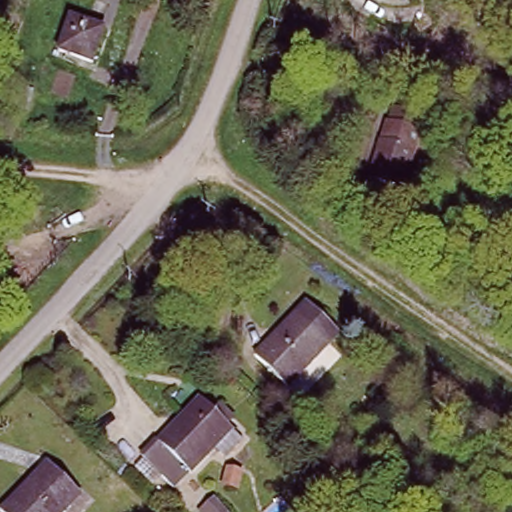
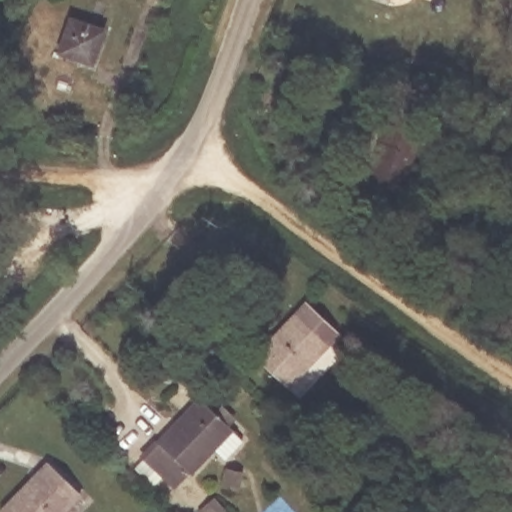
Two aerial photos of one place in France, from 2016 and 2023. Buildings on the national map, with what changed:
unchanged [(68,17),(103,30),(90,64),(55,52),(68,17)]
unchanged [(391,120),(420,129),(418,140),(419,140),(403,202),(371,195),(388,132),(391,120)]
unchanged [(304,305),(338,336),(294,379),(262,347),(304,305)]
unchanged [(169,474),(163,480),(143,461),(199,401),(231,431),(189,475),(181,485),(169,474)]
unchanged [(49,461),(83,492),(65,512),(8,512),(4,508),(49,461)]
unchanged [(224,512),(207,512),(214,503),(224,512)]

